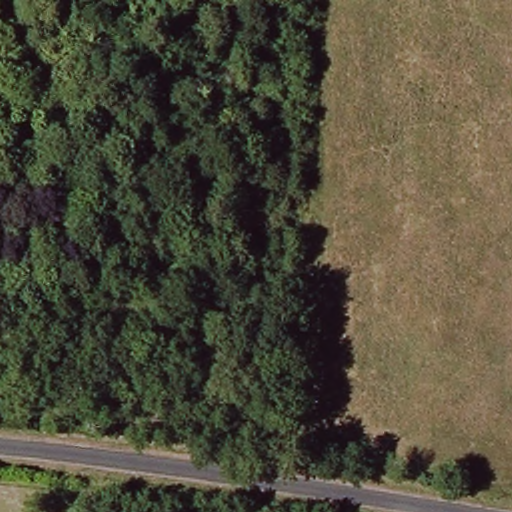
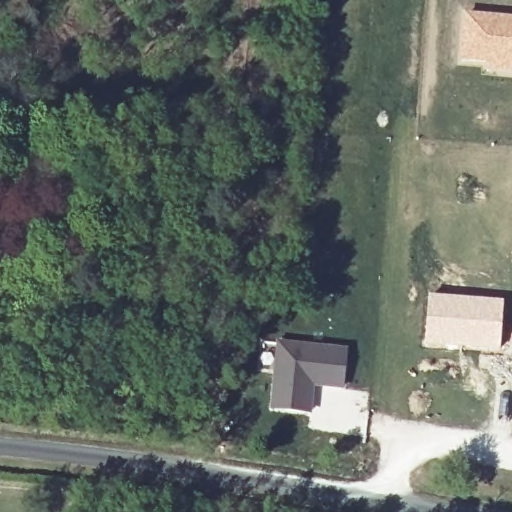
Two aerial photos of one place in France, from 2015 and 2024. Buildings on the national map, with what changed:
new [(464,12),(512,16),(512,74),(482,72),(483,66),(457,63),(464,12)]
new [(427,293),(505,299),(501,350),(422,345),(427,293)]
new [(277,349),(344,355),(340,393),(310,390),(307,417),(270,414),(277,349)]

